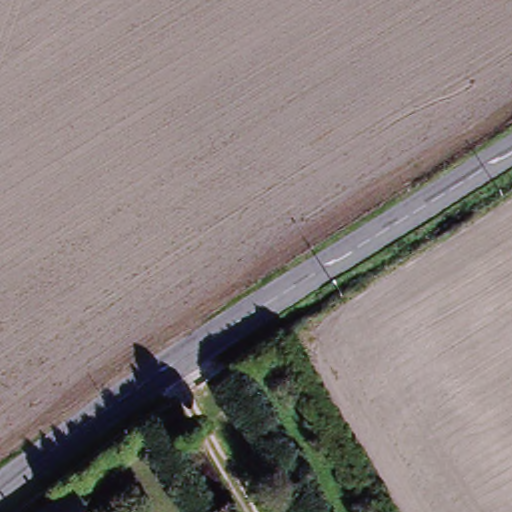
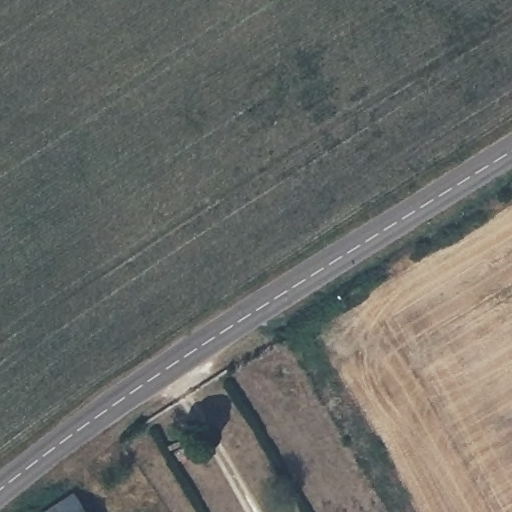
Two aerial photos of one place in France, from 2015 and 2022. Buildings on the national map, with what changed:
unchanged [(72,495),(83,512),(46,512),(72,495)]

